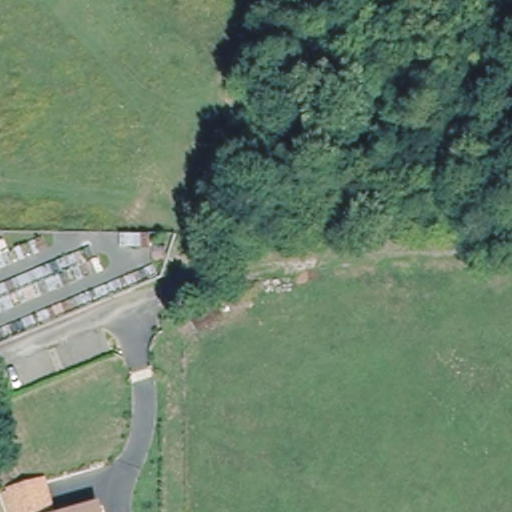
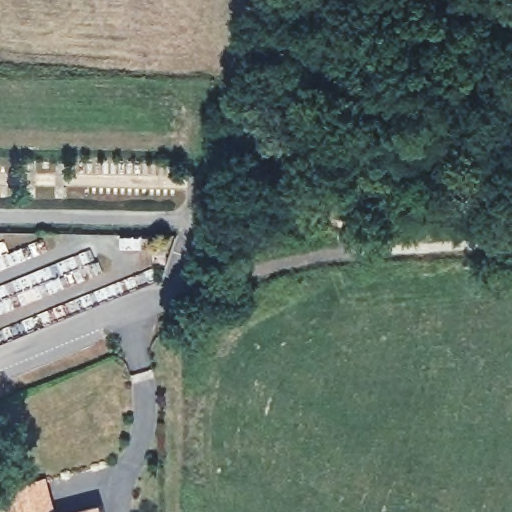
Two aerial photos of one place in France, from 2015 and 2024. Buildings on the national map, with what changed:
unchanged [(61,512),(10,512),(4,491),(47,477),(61,512)]
unchanged [(102,512),(82,512),(100,507),(102,512)]

